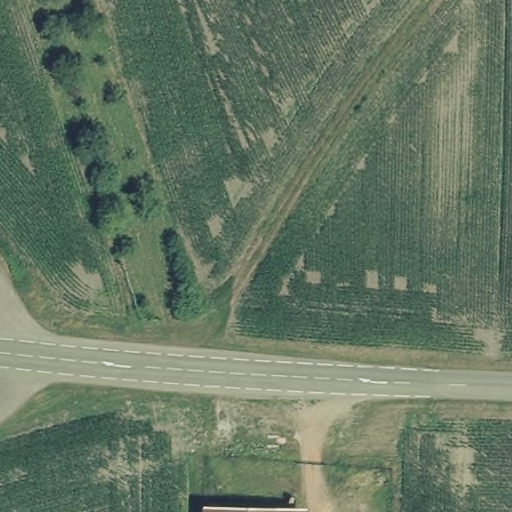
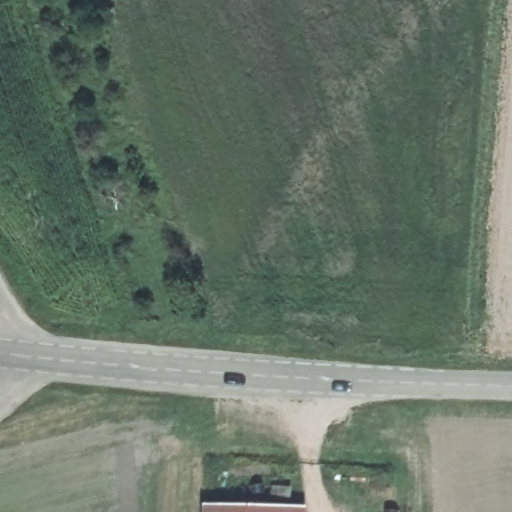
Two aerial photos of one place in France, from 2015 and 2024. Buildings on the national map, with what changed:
unchanged [(294,512),(208,512),(208,502),(294,503),(294,512)]

